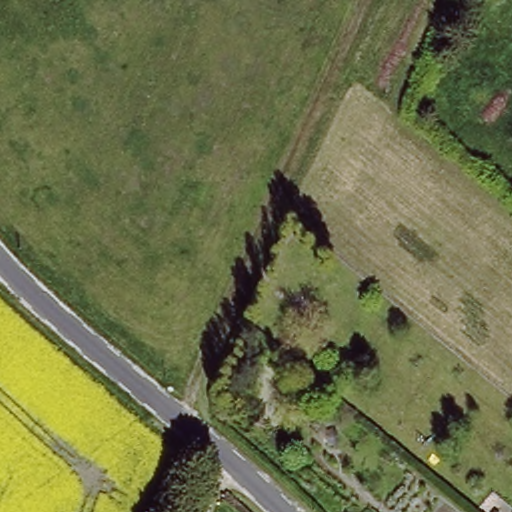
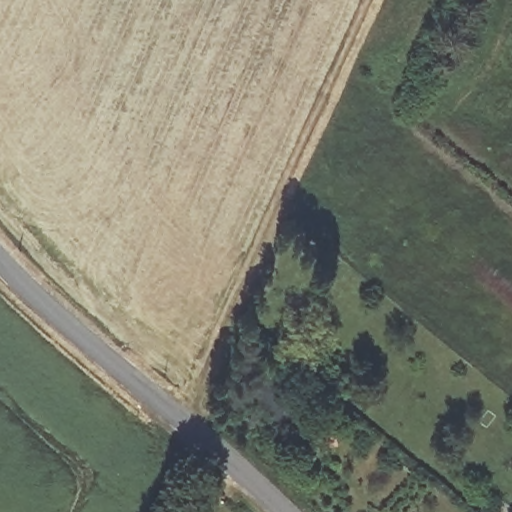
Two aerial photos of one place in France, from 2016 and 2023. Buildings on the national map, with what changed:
unchanged [(320,363),(312,373),(300,362),(307,352),(320,363)]

